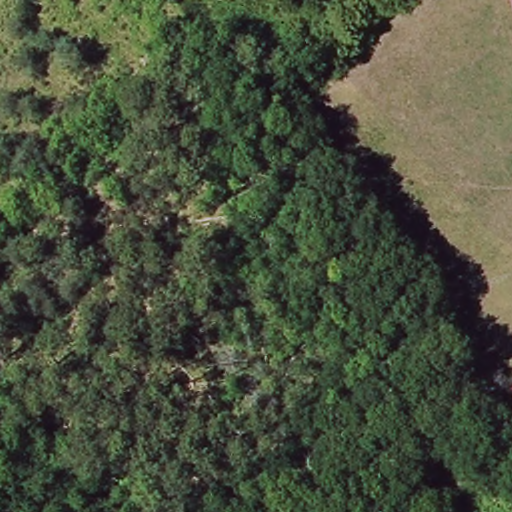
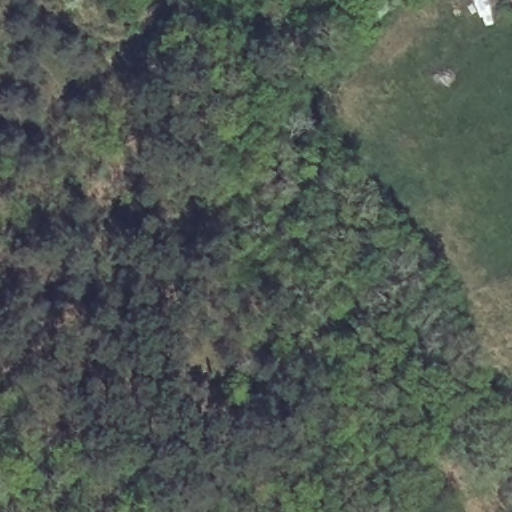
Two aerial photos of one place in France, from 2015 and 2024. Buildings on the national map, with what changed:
unchanged [(510,12),(506,0),(512,0),(512,12),(510,12)]
unchanged [(354,149),(370,182),(345,193),(329,162),(354,149)]
unchanged [(512,388),(512,417),(500,393),(512,388)]

